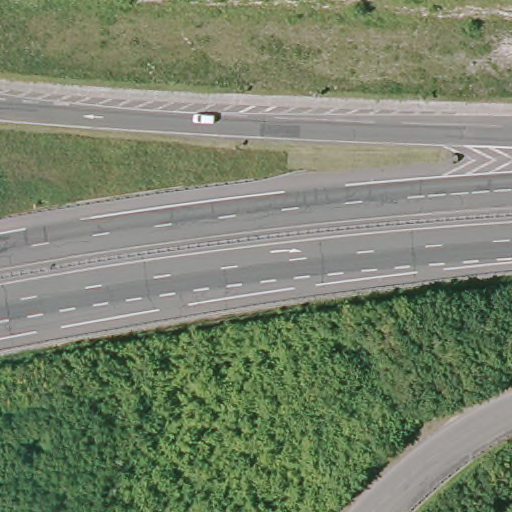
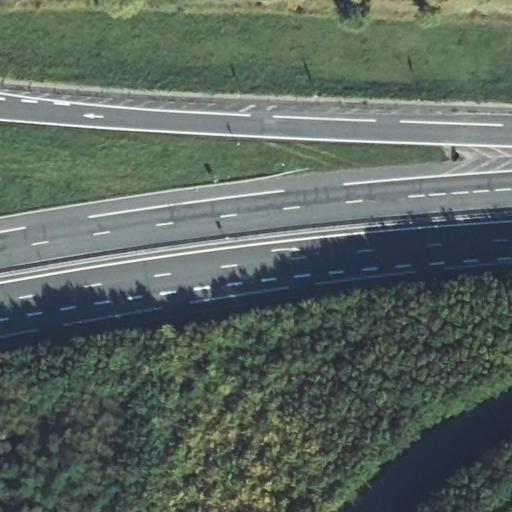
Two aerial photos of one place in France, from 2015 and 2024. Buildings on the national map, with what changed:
[]

